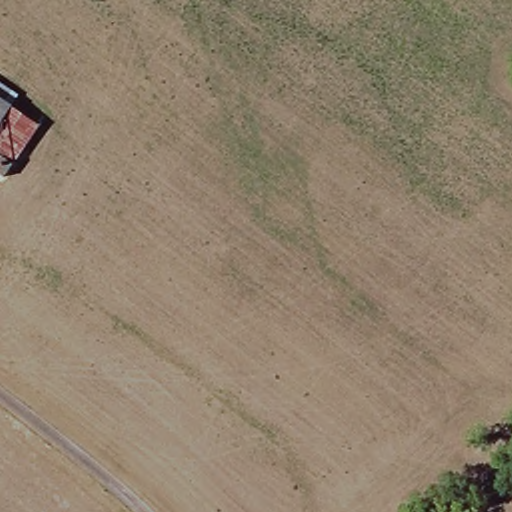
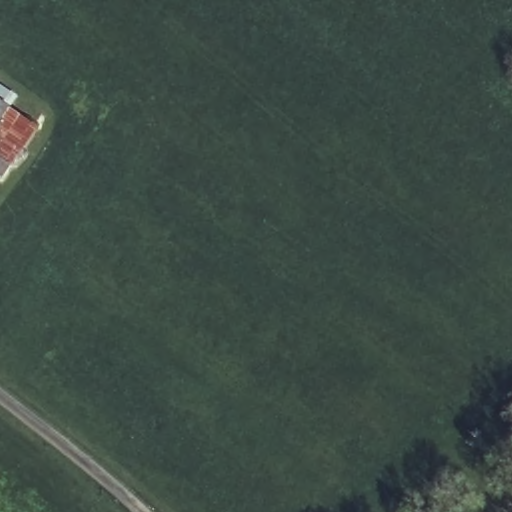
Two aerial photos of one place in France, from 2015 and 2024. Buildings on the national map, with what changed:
unchanged [(0,115),(0,112),(1,113),(0,115)]
unchanged [(31,134),(4,172),(0,169),(0,115),(1,113),(31,134)]
unchanged [(0,169),(4,172),(0,177),(0,169)]

